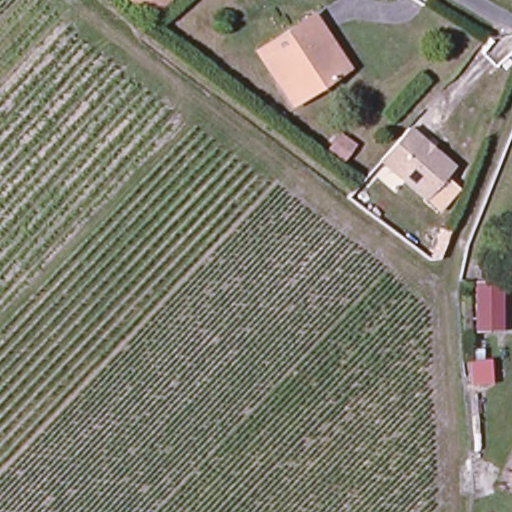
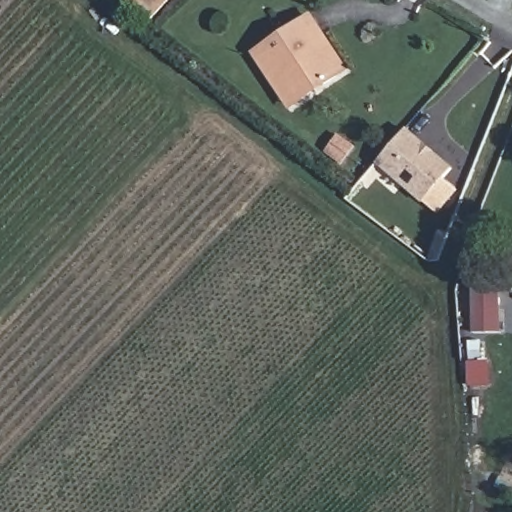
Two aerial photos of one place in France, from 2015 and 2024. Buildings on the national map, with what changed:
unchanged [(144,15),(126,0),(156,0),(144,15)]
unchanged [(275,84),(256,59),(306,19),(318,35),(319,34),(348,70),(304,105),(296,110),(275,84)]
unchanged [(412,131),(456,172),(427,204),(383,162),(412,131)]
unchanged [(343,168),(323,155),(334,138),(354,150),(343,168)]
unchanged [(508,330),(485,339),(471,290),(495,281),(508,330)]
unchanged [(479,371),(480,395),(467,395),(467,372),(479,371)]

